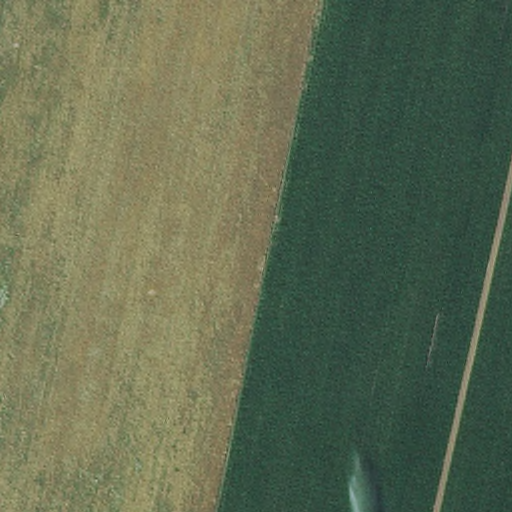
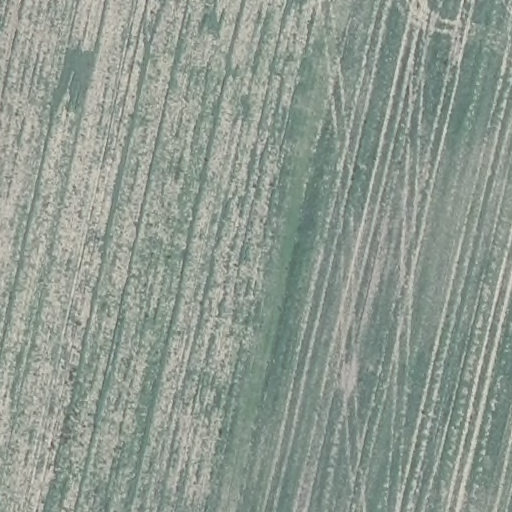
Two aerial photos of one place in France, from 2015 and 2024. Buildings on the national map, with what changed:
[]

